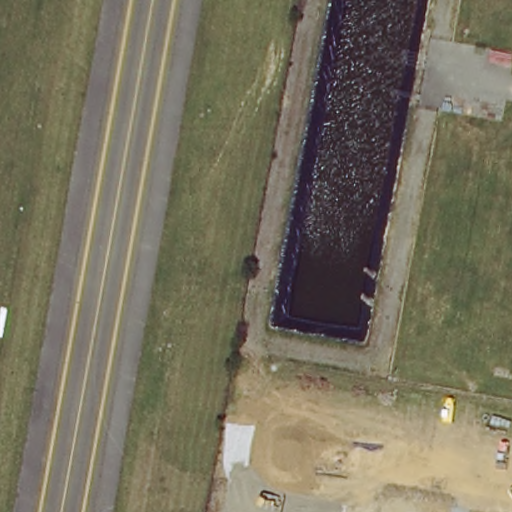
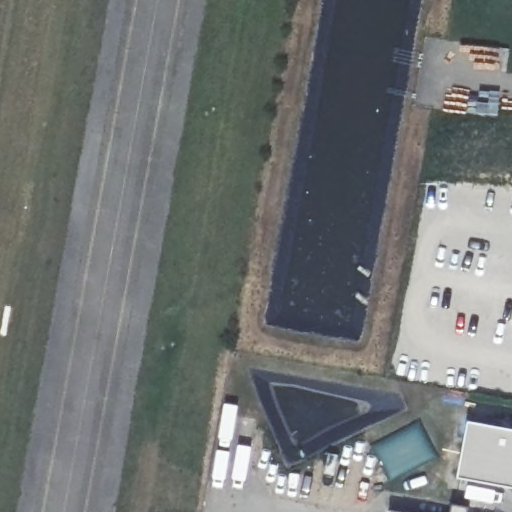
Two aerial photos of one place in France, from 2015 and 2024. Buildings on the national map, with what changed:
new [(468,420),(512,428),(512,487),(459,478),(468,420)]
unchanged [(468,507),(467,512),(451,512),(453,504),(468,507)]
unchanged [(406,512),(391,512),(392,505),(407,508),(406,512)]
unchanged [(413,512),(406,512),(407,511),(413,512)]

